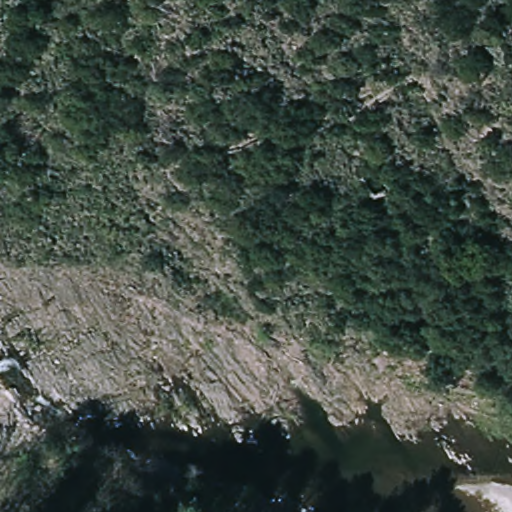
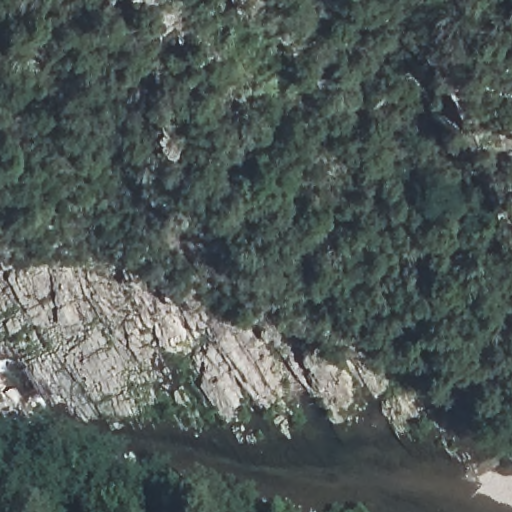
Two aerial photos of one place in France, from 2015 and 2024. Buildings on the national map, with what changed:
unchanged [(389,170),(417,164),(427,197),(402,203),(389,170)]

